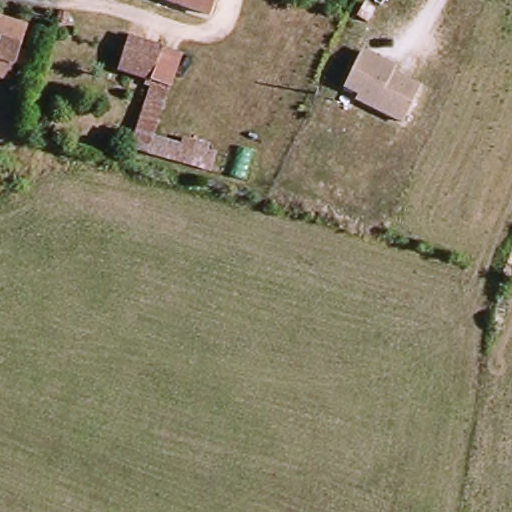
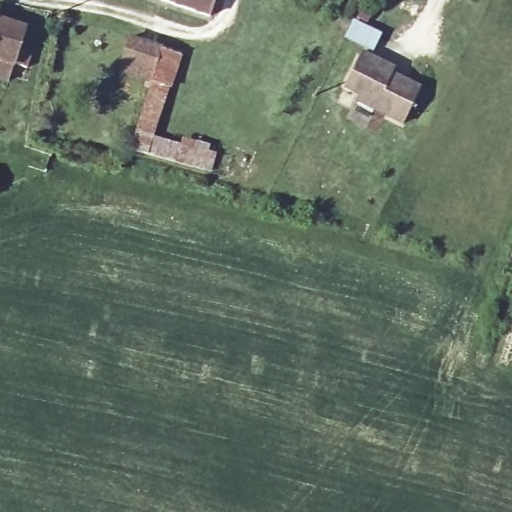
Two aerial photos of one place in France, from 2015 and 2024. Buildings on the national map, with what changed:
unchanged [(212,21),(154,0),(220,0),(212,21)]
unchanged [(25,25),(16,55),(29,58),(26,69),(0,62),(0,18),(25,25)]
unchanged [(149,85),(117,75),(128,37),(159,50),(181,58),(171,89),(153,138),(180,146),(182,139),(209,146),(208,152),(216,154),(209,175),(128,152),(149,85)]
unchanged [(418,85),(403,122),(341,92),(356,54),(418,85)]

